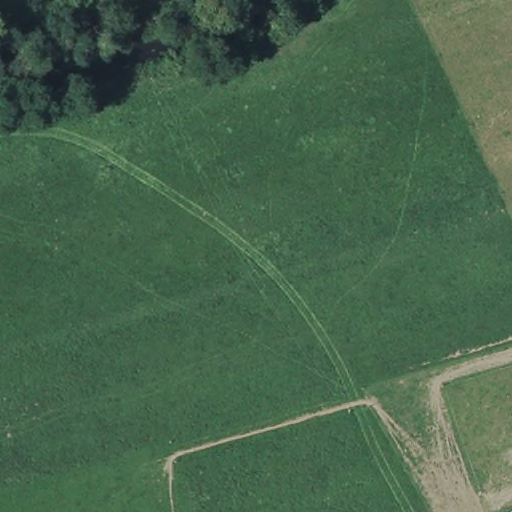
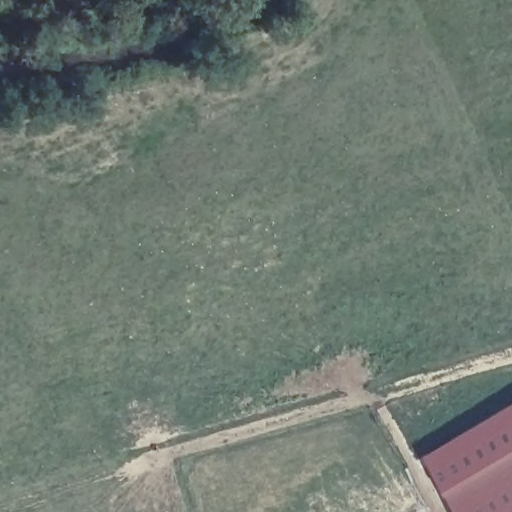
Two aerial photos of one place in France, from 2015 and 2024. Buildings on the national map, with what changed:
new [(512,403),(512,512),(458,512),(425,456),(512,403)]

